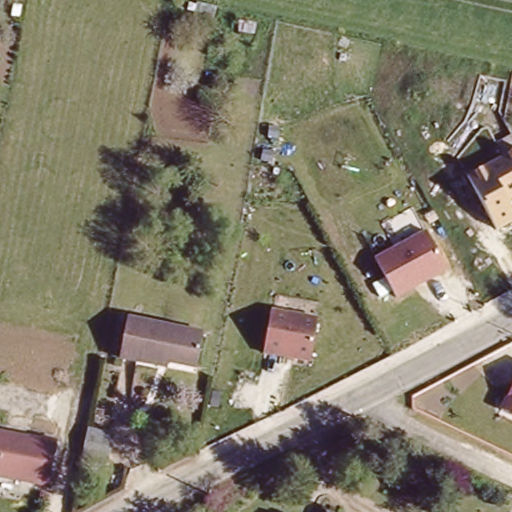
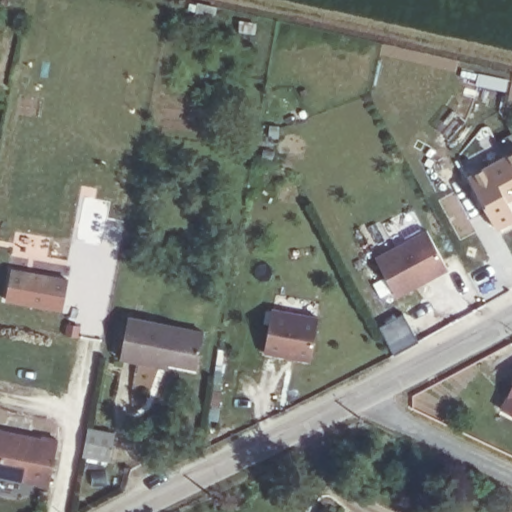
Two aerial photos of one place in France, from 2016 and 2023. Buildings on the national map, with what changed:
unchanged [(510,199),(512,202),(512,223),(492,231),(465,179),(472,175),(470,171),(485,164),(487,168),(505,159),(504,154),(512,150),(512,198),(510,199)]
unchanged [(448,270),(397,297),(375,258),(425,230),(448,270)]
new [(12,269),(70,280),(63,311),(5,301),(12,269)]
unchanged [(316,321),(309,365),(261,353),(268,310),(316,321)]
unchanged [(130,311),(192,321),(190,334),(202,336),(199,358),(123,345),(130,311)]
unchanged [(503,411),(512,392),(512,415),(503,411)]
unchanged [(88,430),(115,435),(110,462),(83,456),(88,430)]
unchanged [(43,437),(60,440),(52,485),(0,475),(0,431),(43,439),(43,437)]
unchanged [(338,511),(340,512),(337,512),(338,511)]

